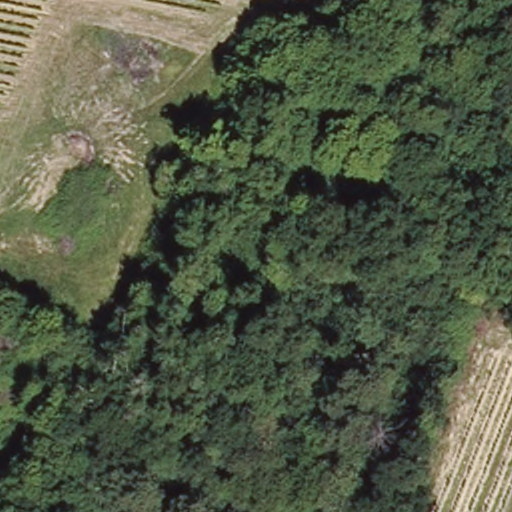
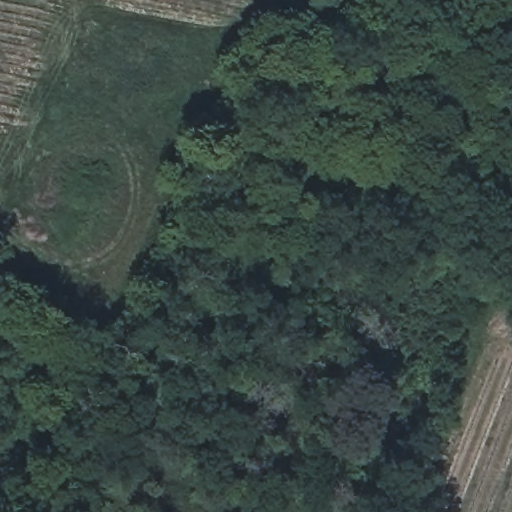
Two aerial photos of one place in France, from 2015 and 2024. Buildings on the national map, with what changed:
[]

